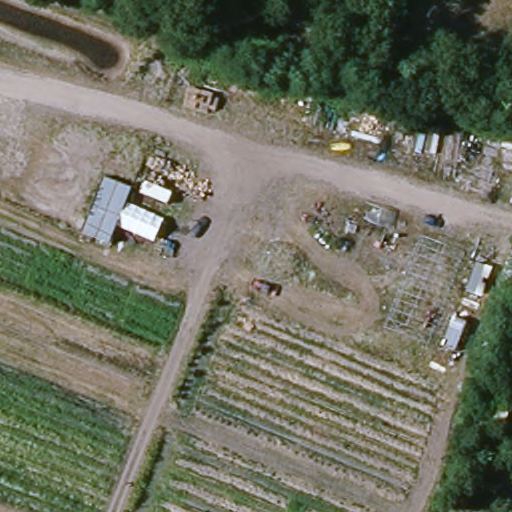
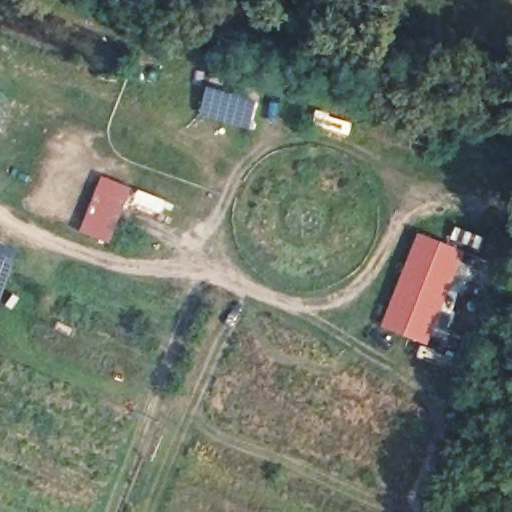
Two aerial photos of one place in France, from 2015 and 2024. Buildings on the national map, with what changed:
new [(201,115),(208,90),(260,105),(252,130),(201,115)]
unchanged [(132,187),(112,243),(82,232),(102,177),(132,187)]
new [(383,328),(421,234),(467,252),(430,344),(383,328)]
new [(0,307),(0,244),(21,251),(0,307)]

